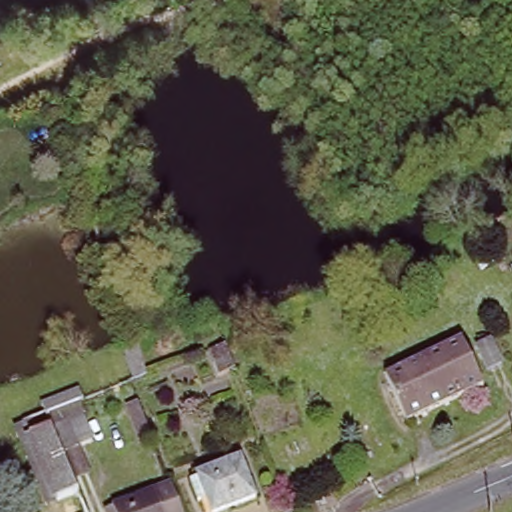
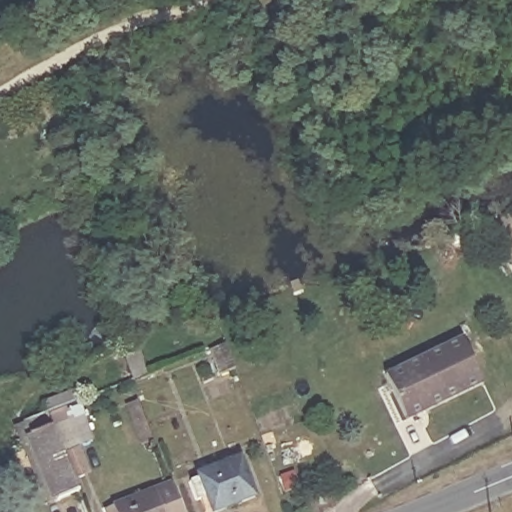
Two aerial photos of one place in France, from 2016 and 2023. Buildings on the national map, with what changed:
unchanged [(460,339),(465,337),(487,385),(410,420),(390,376),(461,342),(460,339)]
unchanged [(228,365),(213,371),(203,347),(218,340),(228,365)]
unchanged [(493,340),(505,363),(490,370),(478,348),(493,340)]
unchanged [(35,435),(60,498),(49,503),(17,424),(48,412),(47,409),(57,406),(63,405),(68,418),(62,421),(53,424),(55,428),(35,435)]
unchanged [(79,489),(60,498),(35,435),(55,428),(64,424),(71,421),(80,445),(73,448),(64,452),(79,489)]
unchanged [(242,455),(258,491),(212,512),(201,487),(206,485),(200,473),(242,455)]
unchanged [(108,512),(172,485),(183,512),(108,512)]

